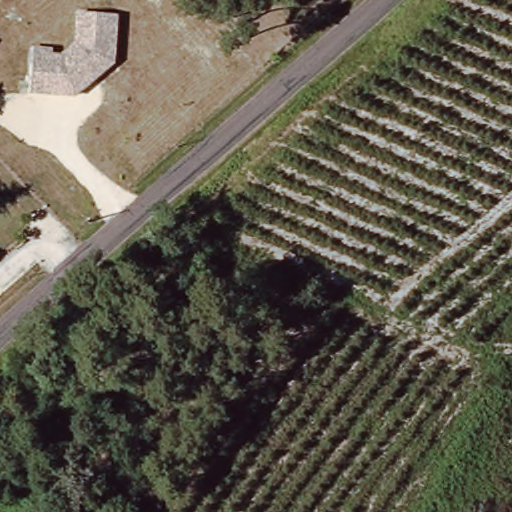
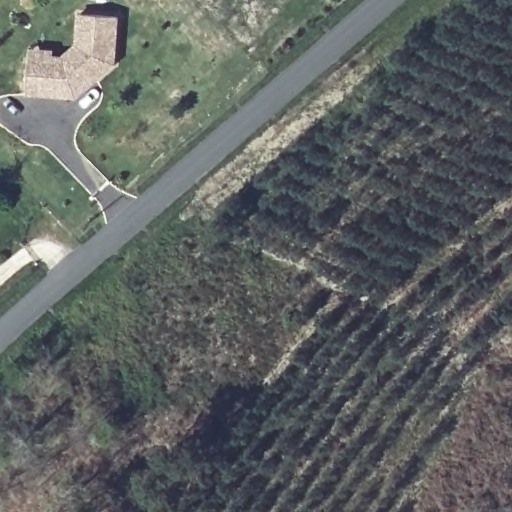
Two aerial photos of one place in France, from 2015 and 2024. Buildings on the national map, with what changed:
unchanged [(27,43),(52,45),(52,52),(61,53),(74,43),(76,12),(118,14),(117,62),(74,96),(24,92),(27,43)]

